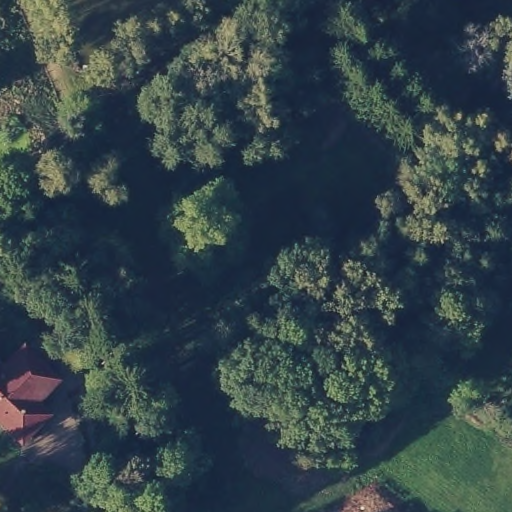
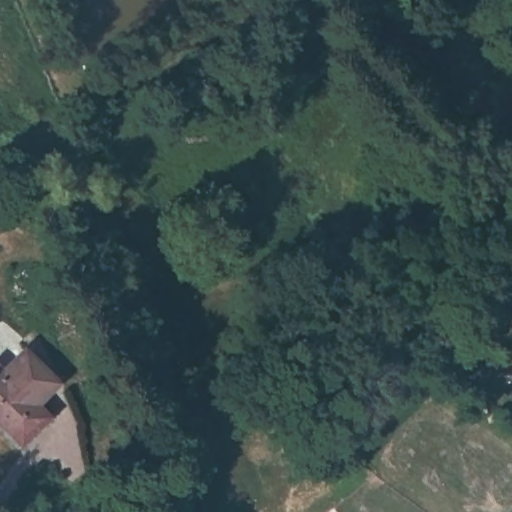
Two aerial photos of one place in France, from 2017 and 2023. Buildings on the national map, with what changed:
unchanged [(56,380),(35,401),(47,415),(25,437),(0,412),(0,368),(5,365),(7,368),(25,350),(56,380)]

